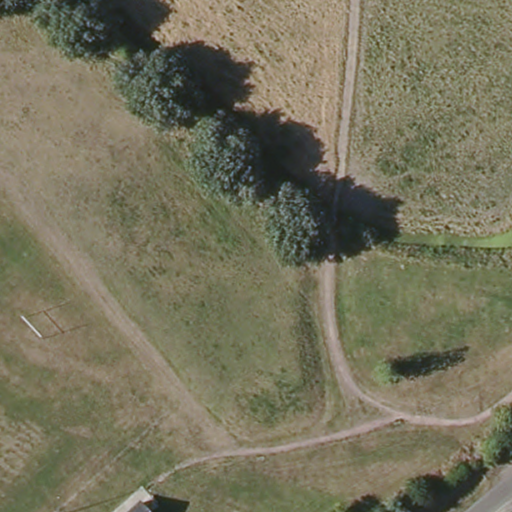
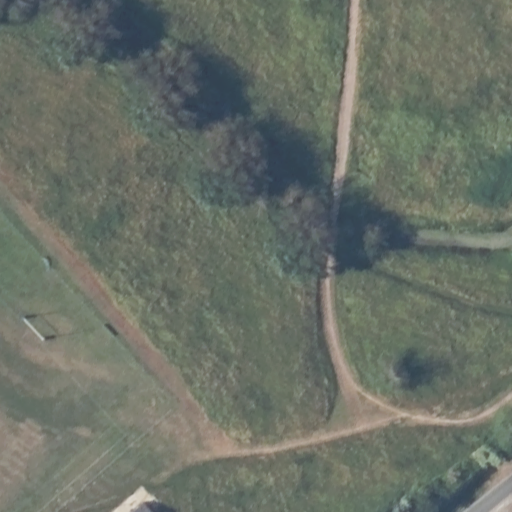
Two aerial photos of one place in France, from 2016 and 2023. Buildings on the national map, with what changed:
unchanged [(136,504),(140,508),(147,502),(156,512),(127,512),(136,504)]

